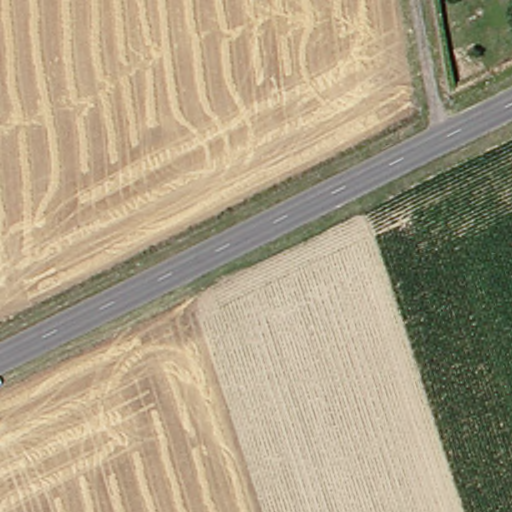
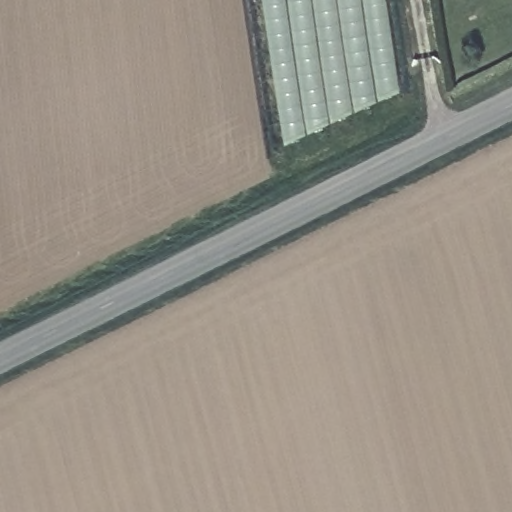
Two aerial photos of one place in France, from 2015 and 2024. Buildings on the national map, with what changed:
new [(268,0),(388,0),(401,91),(290,144),(268,0)]

